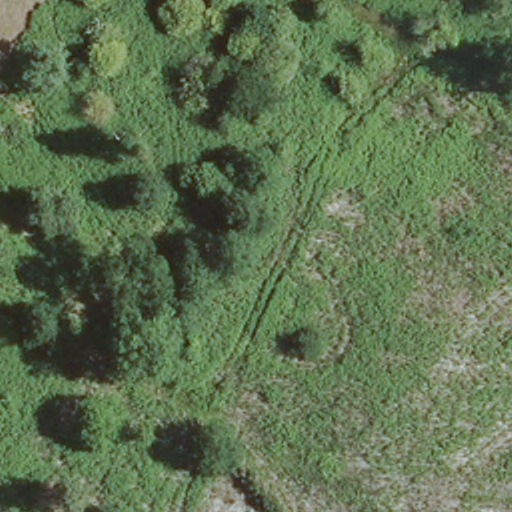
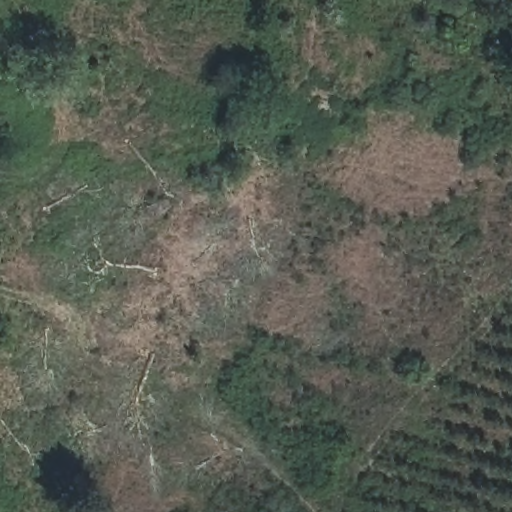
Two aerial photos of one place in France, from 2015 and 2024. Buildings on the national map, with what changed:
[]

